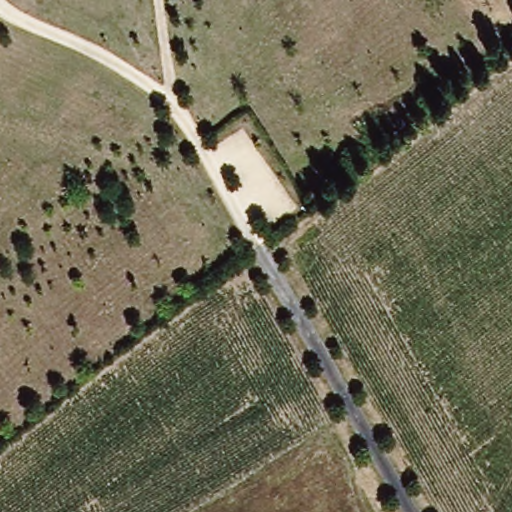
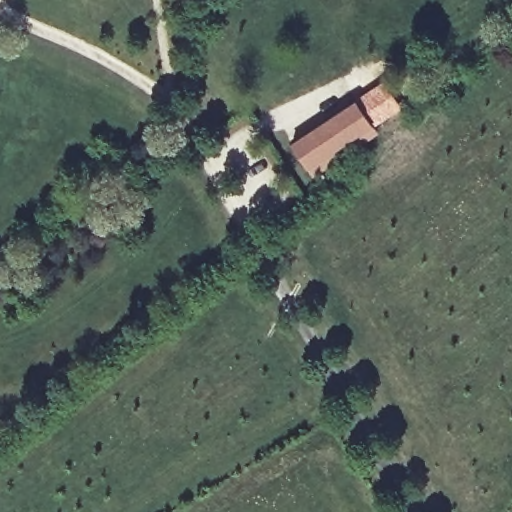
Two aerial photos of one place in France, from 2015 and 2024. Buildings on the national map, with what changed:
new [(364,145),(358,137),(338,151),(343,158),(314,177),(292,144),(358,100),(380,134),(364,145)]

